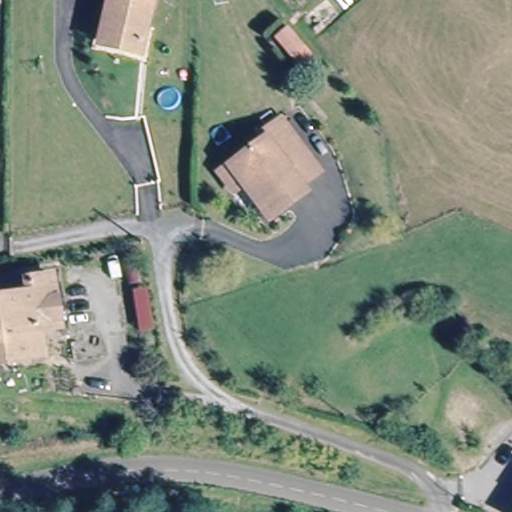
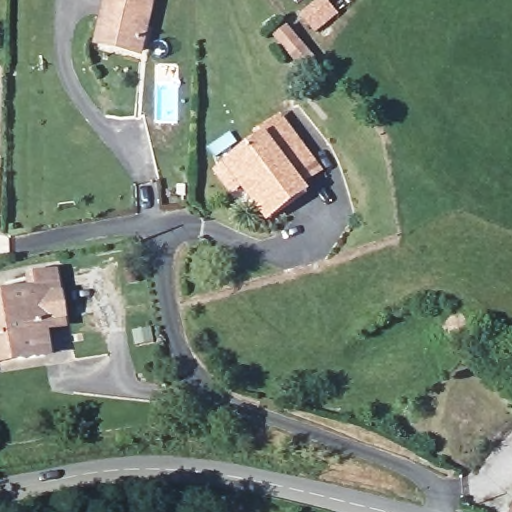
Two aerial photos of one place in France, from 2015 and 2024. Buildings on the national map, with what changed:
unchanged [(110,35),(118,0),(160,0),(149,44),(147,54),(107,44),(110,35)]
unchanged [(299,198),(266,222),(251,205),(249,195),(226,171),(258,145),(254,140),(277,121),(313,166),(292,189),(291,190),(299,198)]
unchanged [(28,301),(26,285),(48,282),(55,330),(34,332),(39,361),(14,364),(0,366),(0,304),(28,301)]

